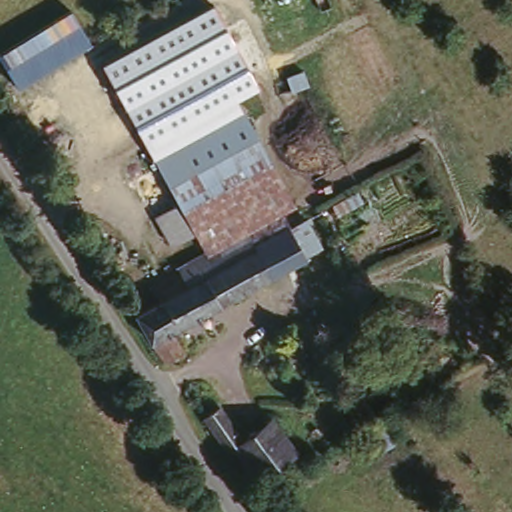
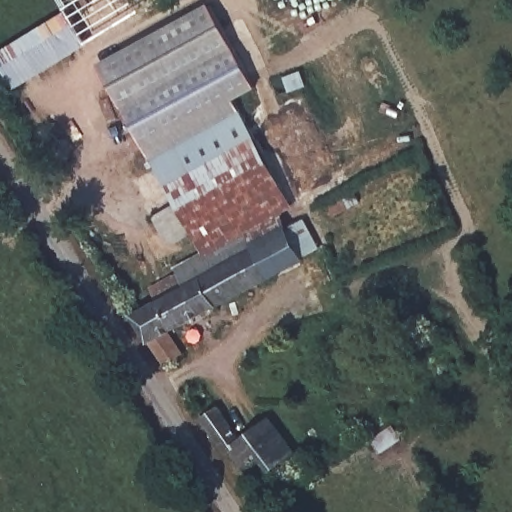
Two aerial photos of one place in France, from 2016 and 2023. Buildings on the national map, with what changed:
unchanged [(215,10),(262,91),(239,107),(151,160),(106,65),(215,10)]
unchanged [(70,12),(95,48),(24,92),(4,56),(70,12)]
unchanged [(239,107),(293,206),(276,218),(205,253),(151,160),(239,107)]
unchanged [(155,293),(180,276),(177,271),(205,253),(276,218),(282,230),(287,227),(303,258),(170,335),(181,355),(165,367),(134,319),(158,303),(155,293)]
unchanged [(296,452),(275,471),(262,458),(248,470),(235,450),(228,457),(226,454),(202,418),(220,407),(243,442),(270,419),(296,452)]

